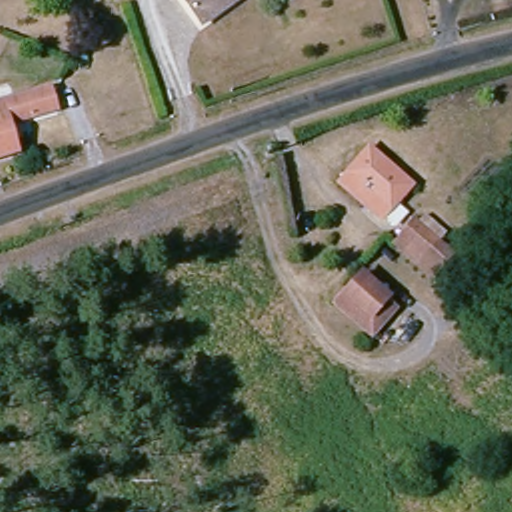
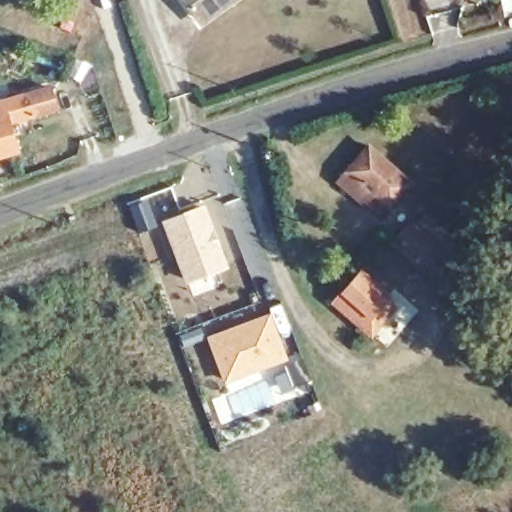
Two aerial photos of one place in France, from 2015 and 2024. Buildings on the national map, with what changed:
unchanged [(182,0),(234,0),(231,3),(203,25),(197,19),(182,0)]
unchanged [(24,90),(38,88),(42,112),(28,114),(5,119),(10,146),(0,148),(0,94),(24,90)]
unchanged [(357,204),(340,191),(349,181),(339,171),(362,144),(408,179),(383,207),(374,218),(357,204)]
new [(171,186),(181,212),(159,222),(160,225),(138,233),(127,204),(171,186)]
demolished [(454,217),(440,207),(453,193),(467,203),(454,217)]
new [(181,212),(204,203),(228,269),(187,287),(160,225),(159,222),(181,212)]
unchanged [(404,238),(416,224),(434,239),(421,253),(404,238)]
unchanged [(338,314),(355,293),(363,284),(383,299),(375,309),(358,329),(338,314)]
new [(270,312),(288,359),(224,384),(205,337),(270,312)]

